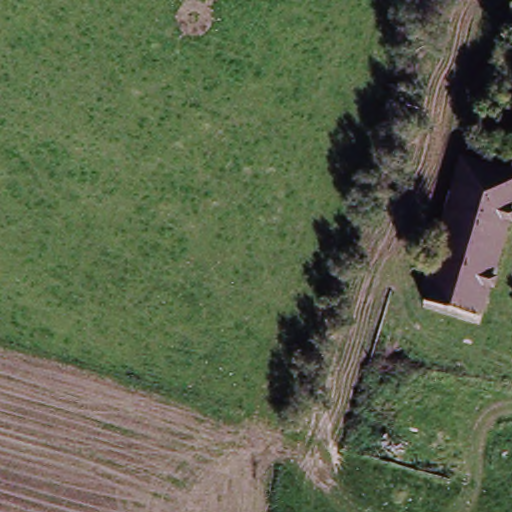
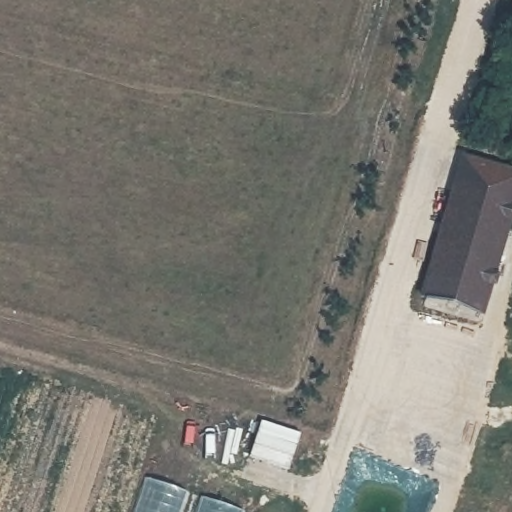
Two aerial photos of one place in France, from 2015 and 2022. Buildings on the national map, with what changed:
unchanged [(450,235),(471,166),(512,178),(512,221),(503,250),(450,235)]
unchanged [(503,251),(482,321),(430,303),(450,235),(503,250),(503,251)]
new [(147,477),(190,491),(182,512),(136,512),(147,477)]
new [(203,497),(245,511),(244,512),(198,512),(203,497)]

